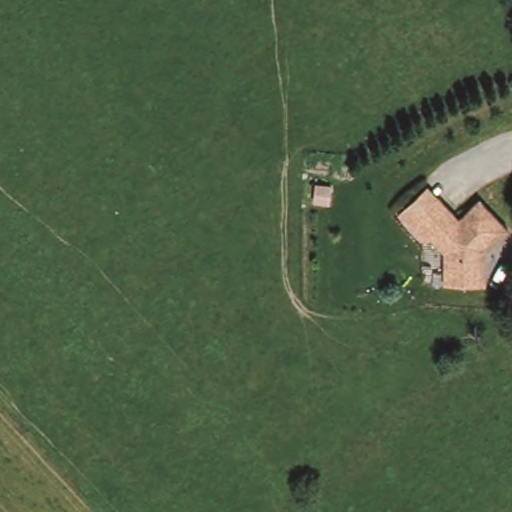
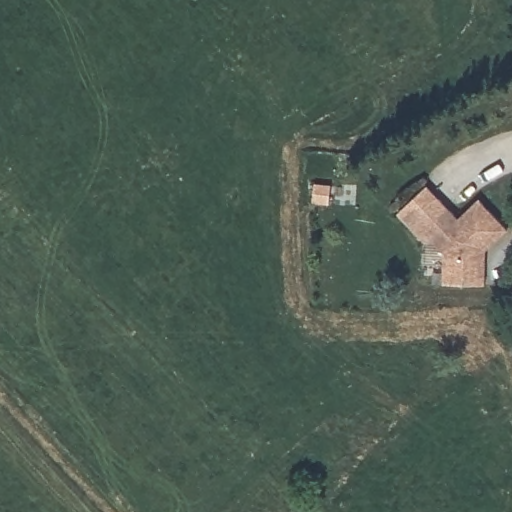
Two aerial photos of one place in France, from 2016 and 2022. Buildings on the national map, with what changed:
unchanged [(426,185),(455,215),(475,195),(506,228),(482,250),(482,281),(441,282),(442,252),(428,237),(423,241),(394,212),(426,185)]

